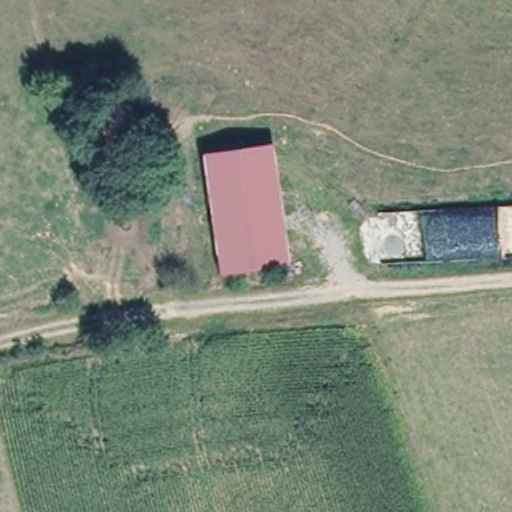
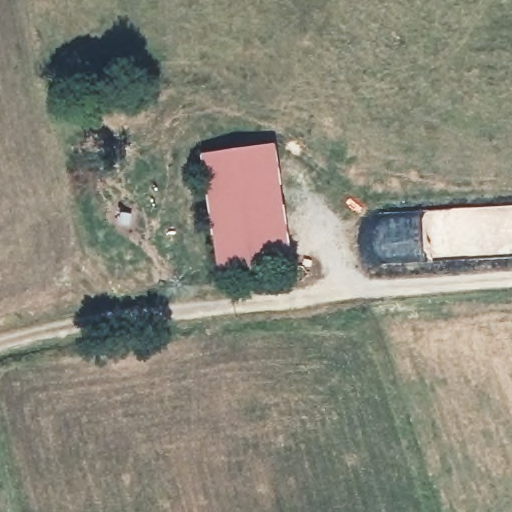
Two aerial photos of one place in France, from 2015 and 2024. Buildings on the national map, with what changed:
unchanged [(293,257),(229,268),(209,152),(274,141),(293,257)]

